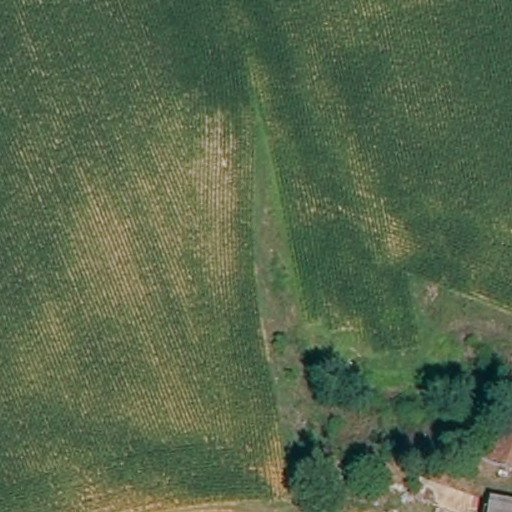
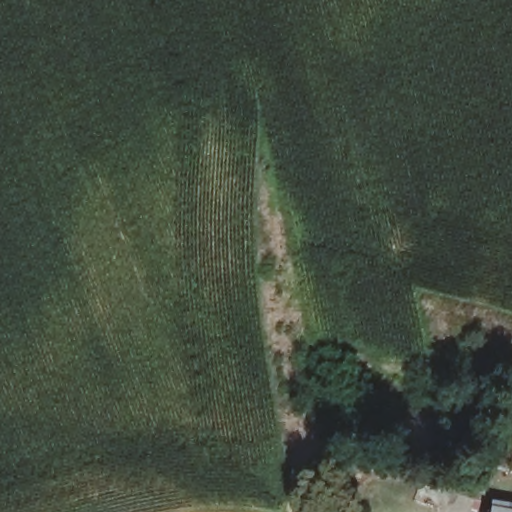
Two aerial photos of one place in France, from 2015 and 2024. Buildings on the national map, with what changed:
unchanged [(512,480),(488,469),(511,389),(512,389),(512,480)]
unchanged [(323,495),(310,493),(314,470),(327,473),(323,495)]

